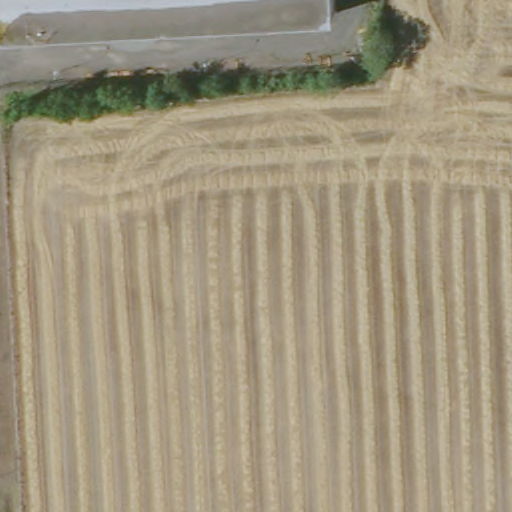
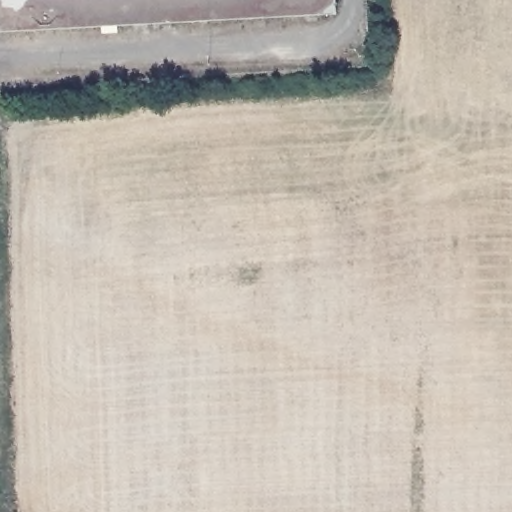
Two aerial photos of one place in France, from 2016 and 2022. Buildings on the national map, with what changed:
unchanged [(334,0),(335,14),(0,31),(0,0),(334,0)]

